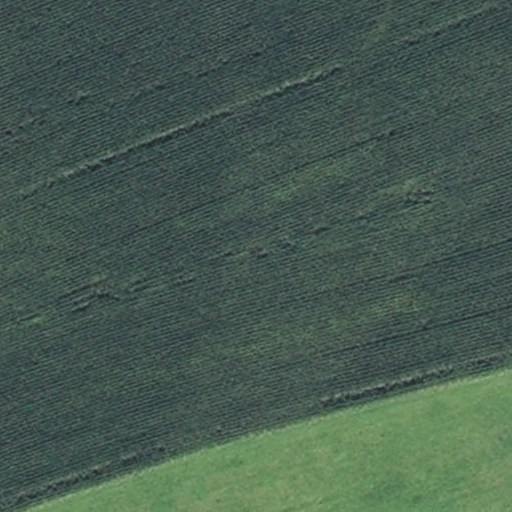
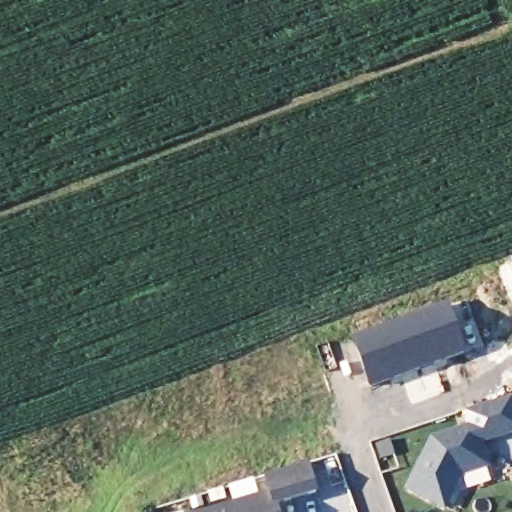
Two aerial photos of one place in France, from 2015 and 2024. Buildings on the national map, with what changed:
new [(510,259),(512,258),(512,264),(510,259)]
new [(400,314),(448,298),(467,352),(407,376),(371,389),(351,335),(400,314)]
new [(503,399),(512,424),(512,432),(490,439),(497,463),(458,475),(442,509),(405,491),(429,442),(468,429),(463,412),(503,399)]
new [(268,496),(263,478),(305,466),(314,495),(273,508),(274,512),(214,512),(268,496)]

